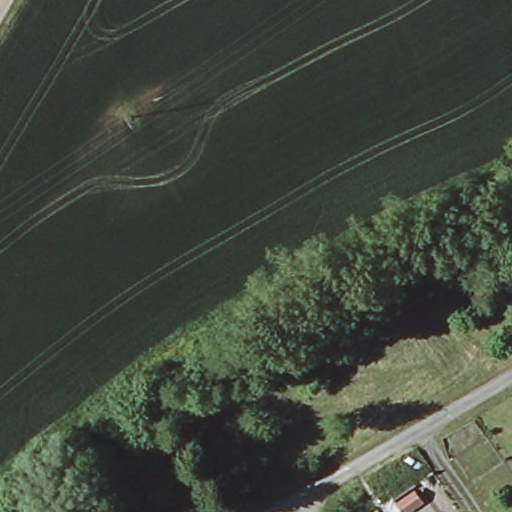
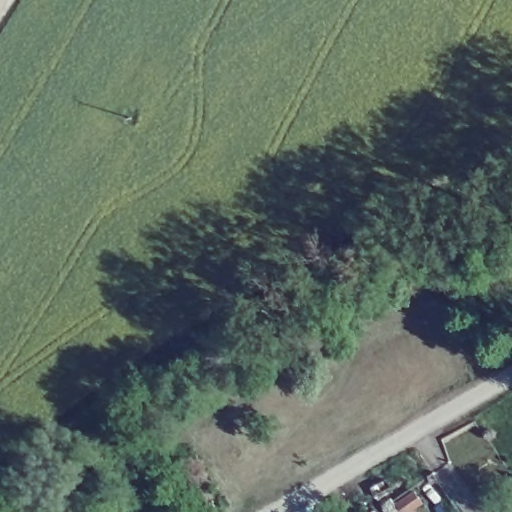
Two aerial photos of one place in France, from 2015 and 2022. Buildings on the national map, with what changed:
unchanged [(417,492),(424,503),(411,512),(402,512),(398,505),(417,492)]

